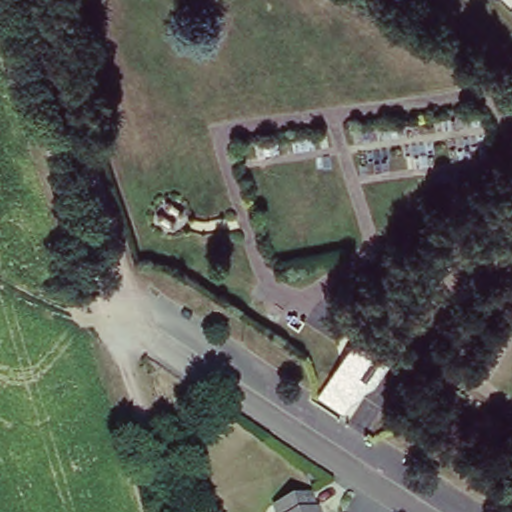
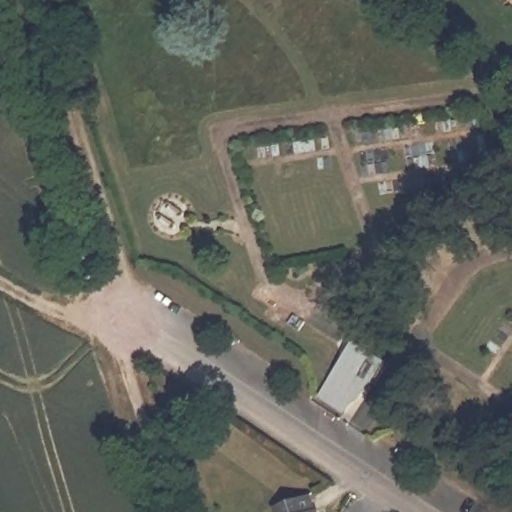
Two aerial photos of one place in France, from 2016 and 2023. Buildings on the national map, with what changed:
unchanged [(347,410),(318,393),(355,338),(390,361),(347,410)]
unchanged [(309,496),(313,510),(316,509),(317,512),(277,512),(275,506),(309,496)]

